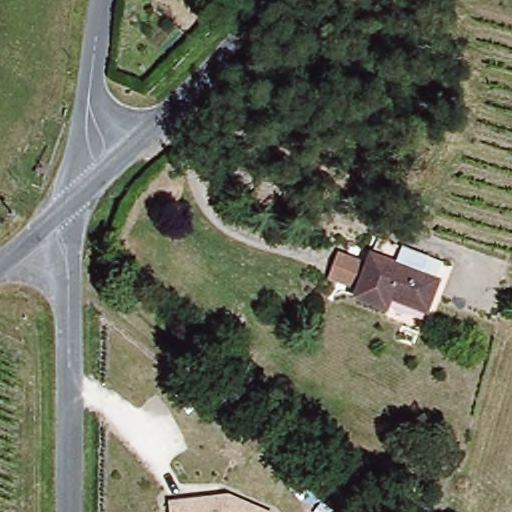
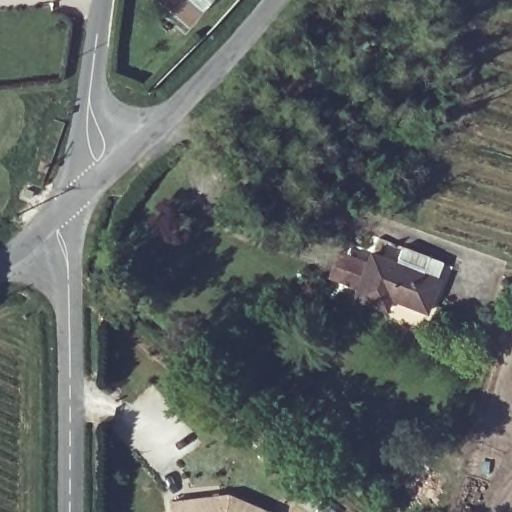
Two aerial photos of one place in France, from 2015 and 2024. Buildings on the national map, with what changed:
unchanged [(441,273),(432,311),(393,302),(392,310),(362,302),(374,257),(441,273)]
unchanged [(172,512),(171,501),(230,492),(275,510),(274,512),(172,512)]

